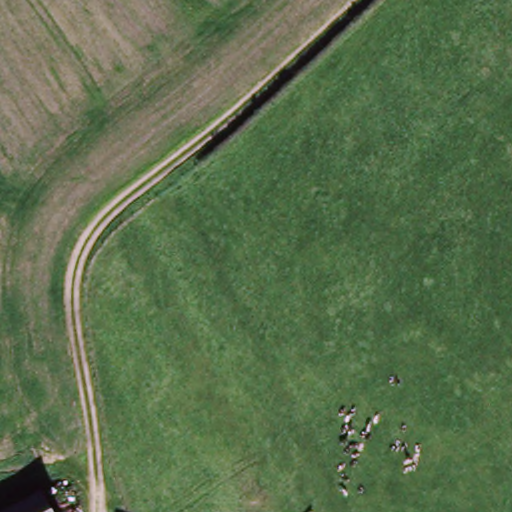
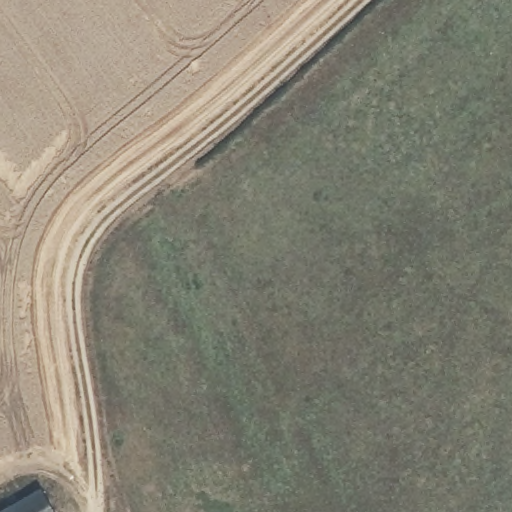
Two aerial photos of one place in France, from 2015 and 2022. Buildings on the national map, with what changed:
unchanged [(47,500),(54,512),(27,512),(47,500)]

